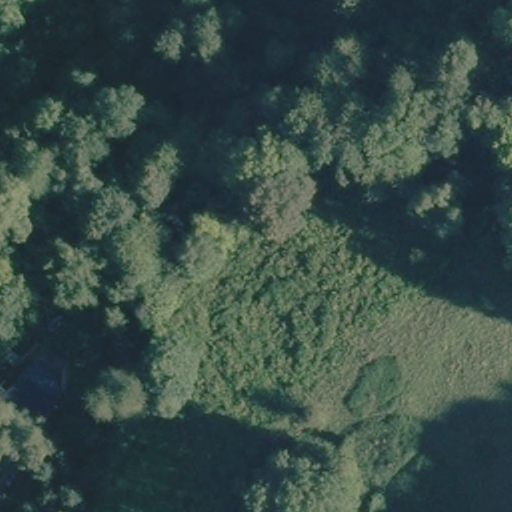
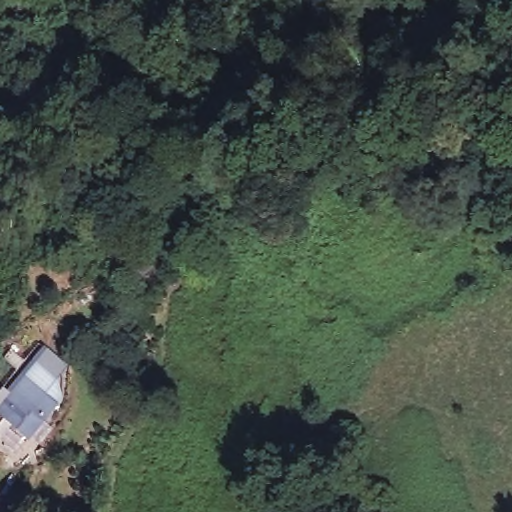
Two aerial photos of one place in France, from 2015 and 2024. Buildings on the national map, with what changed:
unchanged [(35,384),(25,372),(37,360),(60,380),(60,407),(31,434),(5,411),(35,384)]

